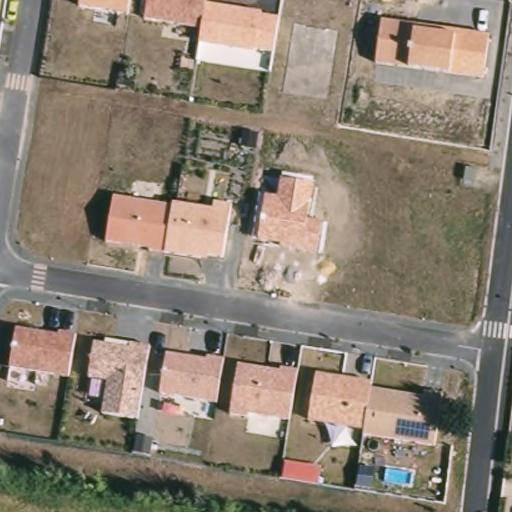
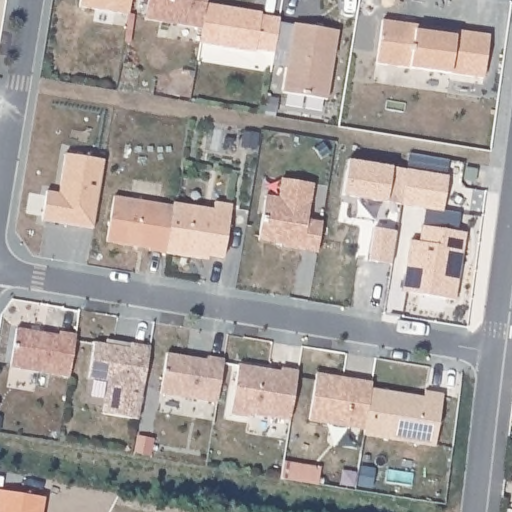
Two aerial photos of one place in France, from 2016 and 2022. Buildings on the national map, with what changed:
unchanged [(80,5),(81,0),(129,0),(127,13),(80,5)]
unchanged [(148,0),(207,0),(207,2),(202,26),(145,19),(148,0)]
unchanged [(260,15),(278,18),(273,51),(255,49),(254,51),(199,43),(207,2),(260,11),(260,15)]
unchanged [(482,78),(375,63),(382,18),(487,34),(482,78)]
new [(293,23),(338,30),(327,99),(282,92),(293,23)]
new [(104,160),(92,226),(43,219),(47,191),(59,192),(65,153),(104,160)]
new [(422,225),(425,208),(401,204),(342,194),(347,160),(407,169),(409,153),(449,160),(447,176),(448,176),(442,211),(460,214),(457,231),(466,232),(455,300),(402,291),(410,240),(419,241),(422,225)]
unchanged [(320,254),(281,250),(282,243),(258,240),(265,195),(277,197),(281,175),(314,180),(307,220),(323,222),(320,254)]
unchanged [(165,252),(105,243),(112,195),(172,205),(165,252)]
unchanged [(224,259),(165,252),(172,205),(214,209),(215,202),(231,204),(224,259)]
new [(373,228),(397,231),(391,264),(368,260),(373,228)]
unchanged [(58,331),(76,334),(68,378),(10,367),(17,327),(57,334),(58,331)]
unchanged [(128,346),(130,342),(150,345),(137,420),(101,414),(106,382),(87,379),(94,339),(128,346)]
unchanged [(206,354),(224,357),(217,404),(160,394),(166,353),(206,360),(206,354)]
unchanged [(280,366),(297,369),(288,421),(250,414),(249,419),(230,416),(238,364),(279,370),(280,366)]
unchanged [(372,381),(372,387),(422,396),(423,391),(442,394),(435,447),(362,435),(363,431),(307,422),(315,372),(372,381)]

